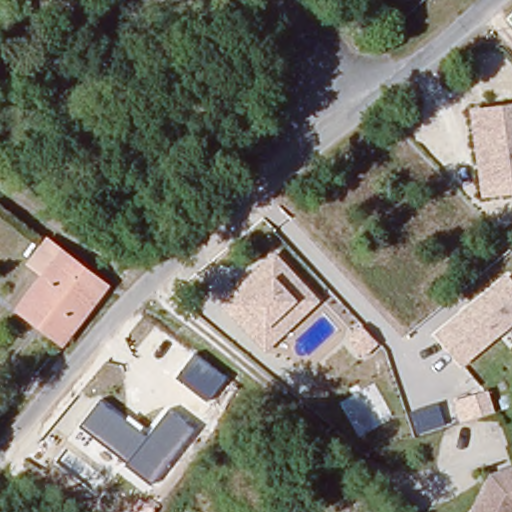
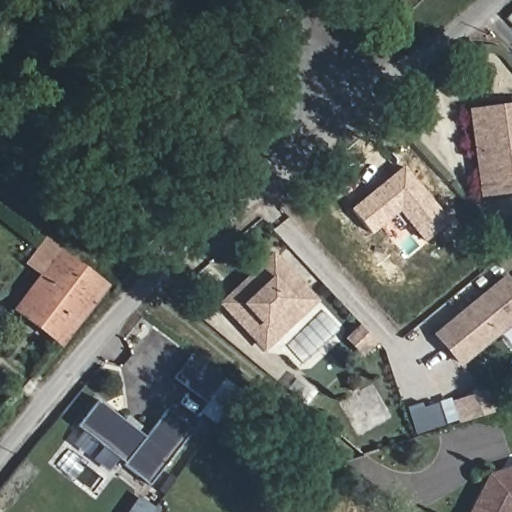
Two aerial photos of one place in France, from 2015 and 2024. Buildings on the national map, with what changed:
unchanged [(471,110),(512,104),(512,190),(483,194),(471,110)]
new [(404,167),(450,221),(425,241),(400,209),(372,231),(353,208),(404,167)]
unchanged [(62,351),(2,303),(50,248),(108,295),(62,351)]
unchanged [(265,354),(220,304),(273,253),(320,301),(265,354)]
unchanged [(512,282),(512,326),(461,367),(435,334),(507,276),(512,282)]
unchanged [(209,404),(173,377),(191,350),(229,379),(209,404)]
unchanged [(150,481),(79,425),(99,398),(126,419),(130,415),(145,426),(144,428),(150,433),(168,411),(191,429),(150,481)]
new [(420,408),(434,403),(441,426),(426,430),(412,434),(405,407),(418,403),(420,408)]
unchanged [(490,470),(498,467),(509,464),(512,463),(512,512),(472,512),(490,470)]
new [(137,497),(151,508),(149,512),(126,512),(137,497)]

